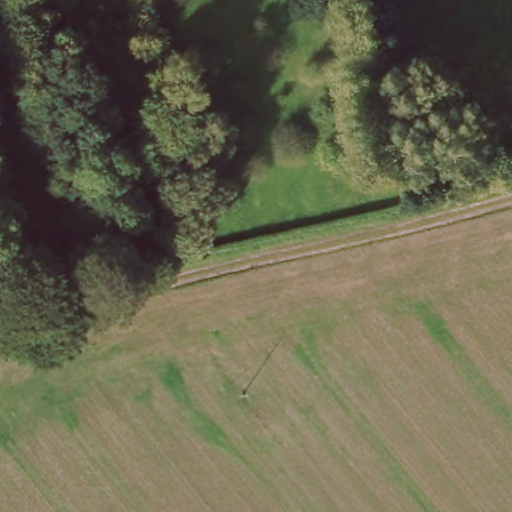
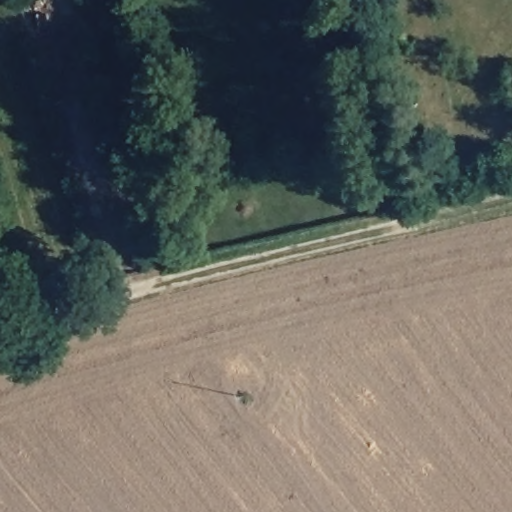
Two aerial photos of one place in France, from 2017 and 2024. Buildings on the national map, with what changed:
unchanged [(51,106),(30,35),(58,25),(81,101),(51,106)]

